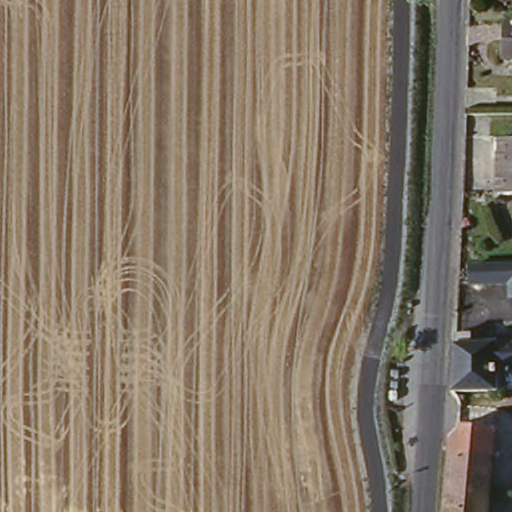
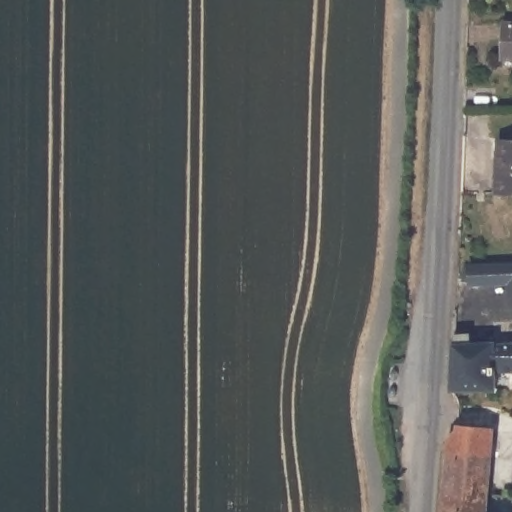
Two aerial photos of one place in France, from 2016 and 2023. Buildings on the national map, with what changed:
unchanged [(512,21),(512,61),(503,61),(504,21),(512,21)]
unchanged [(512,135),(512,188),(501,188),(502,135),(512,135)]
unchanged [(472,257),(512,258),(512,286),(470,285),(471,277),(472,257)]
unchanged [(455,339),(456,322),(475,322),(476,341),(501,340),(512,340),(512,367),(497,366),(497,385),(452,382),(455,339)]
unchanged [(450,441),(460,433),(489,434),(485,497),(448,495),(450,441)]
unchanged [(448,495),(485,497),(484,512),(448,512),(448,495)]

